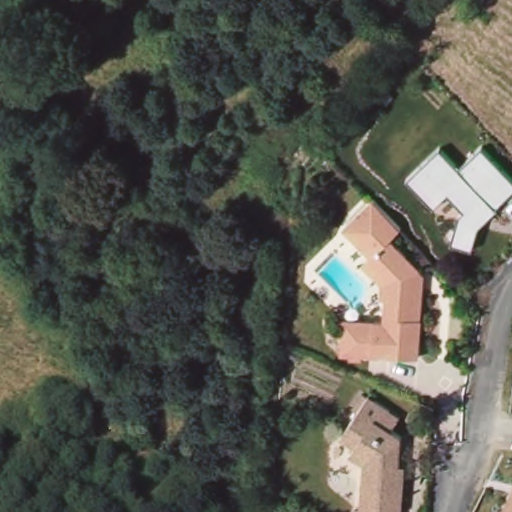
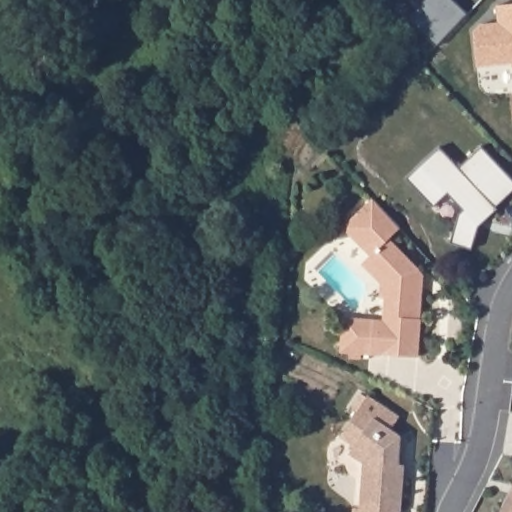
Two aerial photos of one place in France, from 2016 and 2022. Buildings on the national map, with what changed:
new [(468,13),(437,46),(407,17),(423,0),(455,0),(468,13)]
new [(497,4),(512,3),(512,63),(477,66),(474,30),(479,23),(498,22),(497,4)]
unchanged [(463,209),(446,190),(432,203),(406,175),(439,146),(459,167),(482,147),(512,181),(512,191),(478,226),(471,248),(450,242),(457,215),(463,209)]
unchanged [(404,224),(396,234),(429,272),(424,355),(347,350),(350,317),(388,319),(393,282),(370,261),(377,252),(351,226),(376,197),(404,224)]
unchanged [(406,415),(399,426),(407,430),(400,476),(407,476),(403,512),(354,512),(354,509),(358,509),(363,465),(345,456),(351,443),(340,436),(362,395),(383,405),(406,415)]
unchanged [(512,512),(498,512),(512,486),(512,512)]

